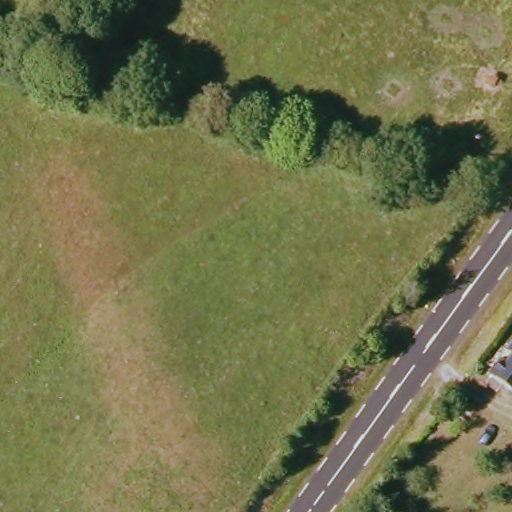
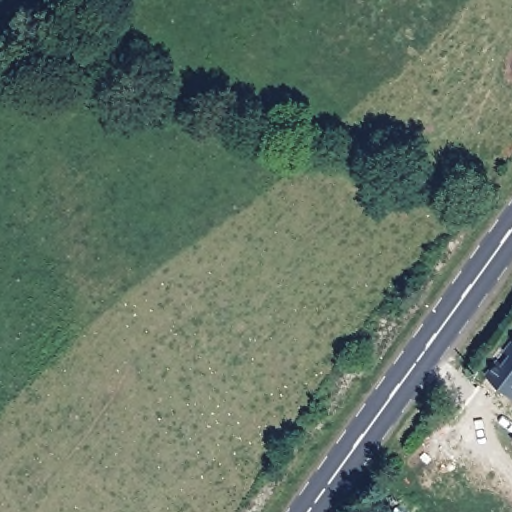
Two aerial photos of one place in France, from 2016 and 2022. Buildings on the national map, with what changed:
unchanged [(494,378),(512,355),(512,391),(494,378)]

